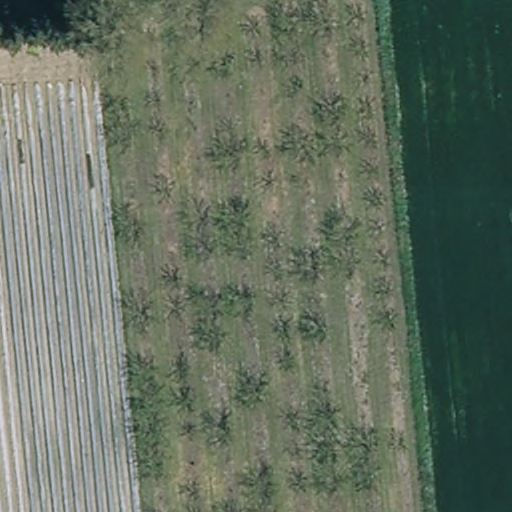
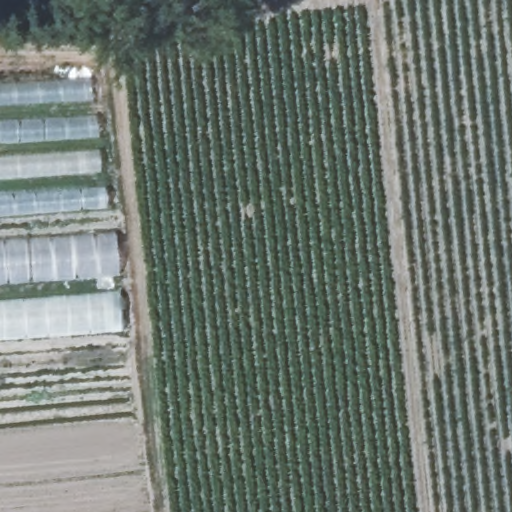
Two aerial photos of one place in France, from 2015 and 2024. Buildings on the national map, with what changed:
new [(0,215),(0,83),(88,79),(106,207),(0,215)]
new [(120,276),(0,285),(0,243),(115,234),(120,276)]
new [(0,339),(0,298),(118,288),(120,329),(0,339)]

